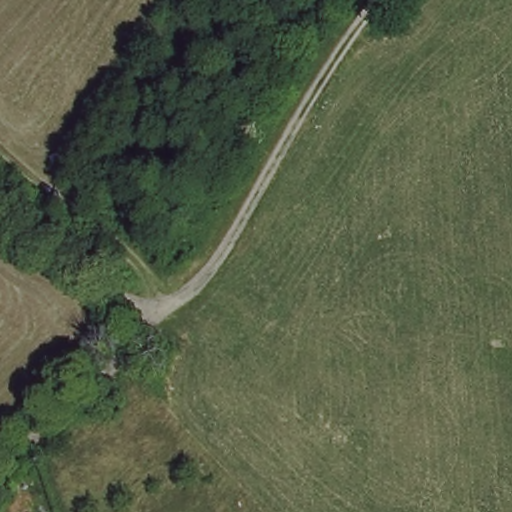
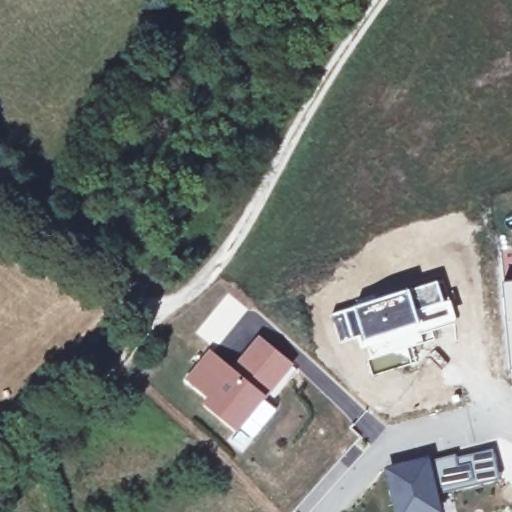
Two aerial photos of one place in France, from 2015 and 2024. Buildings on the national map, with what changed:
new [(439,279),(446,298),(451,297),(459,323),(424,336),(426,342),(383,356),(381,344),(361,350),(357,339),(339,344),(331,313),(439,279)]
new [(507,345),(502,283),(512,283),(512,371),(509,371),(507,345)]
new [(208,403),(213,398),(190,379),(210,356),(233,375),(260,342),(274,352),(264,364),(278,375),(261,397),(236,427),(208,403)]
new [(287,363),(279,373),(264,362),(274,351),(287,363)]
new [(260,397),(274,409),(251,437),(236,425),(260,397)]
new [(454,458),(491,450),(498,481),(432,496),(430,490),(471,481),(468,464),(456,467),(454,458)]
new [(387,488),(391,487),(387,470),(453,455),(456,467),(468,464),(471,481),(430,490),(435,512),(392,512),(387,488)]

